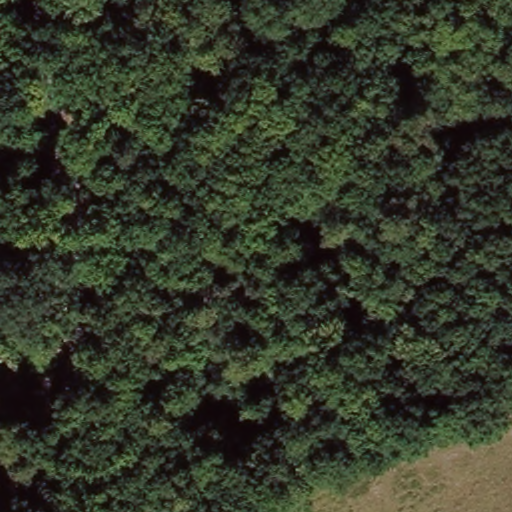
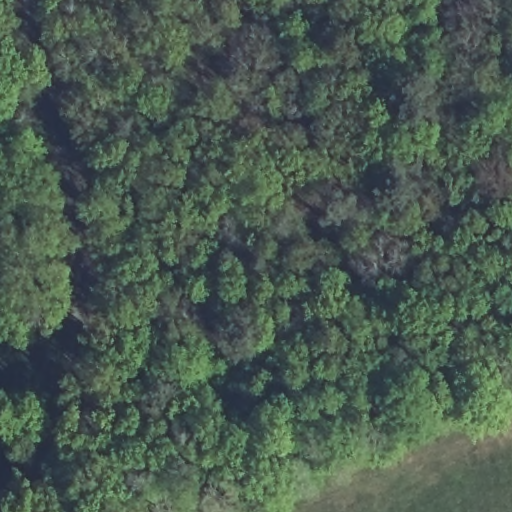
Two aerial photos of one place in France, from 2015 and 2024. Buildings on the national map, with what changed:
[]

